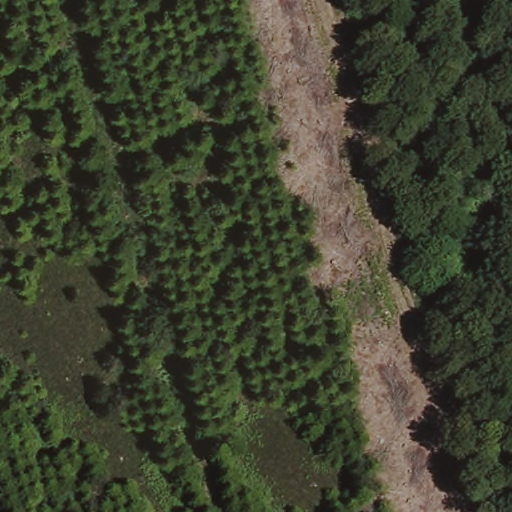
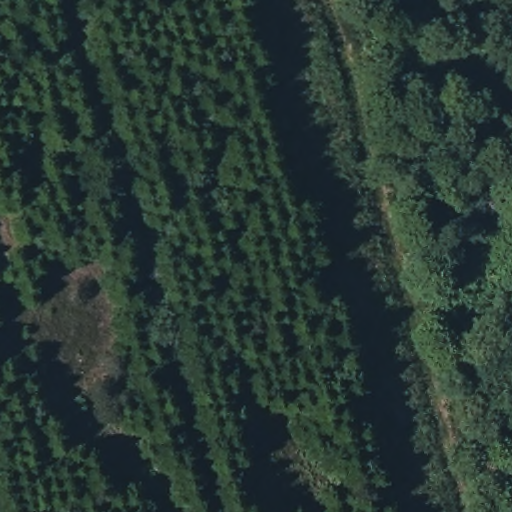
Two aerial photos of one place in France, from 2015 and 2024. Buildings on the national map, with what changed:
[]

